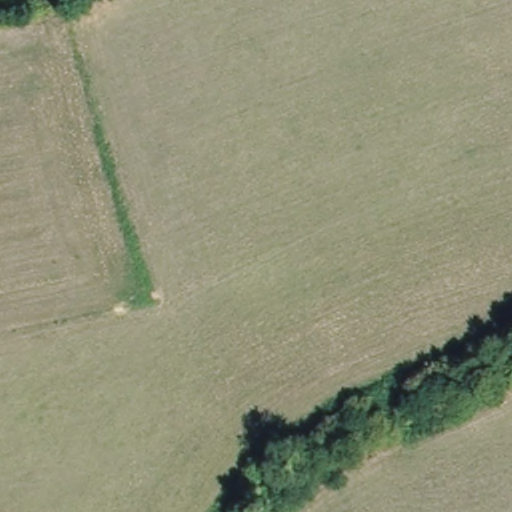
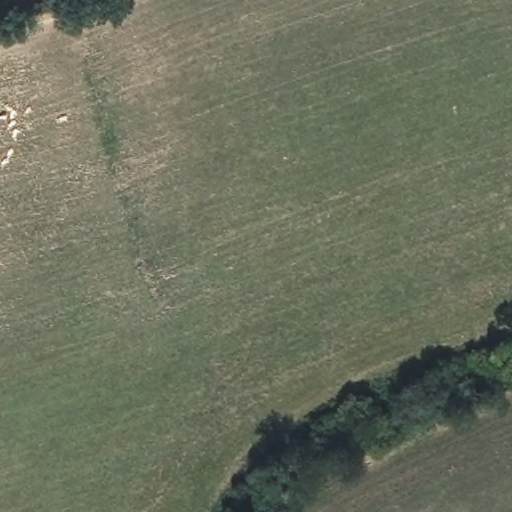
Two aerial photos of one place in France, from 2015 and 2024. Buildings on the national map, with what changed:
[]

